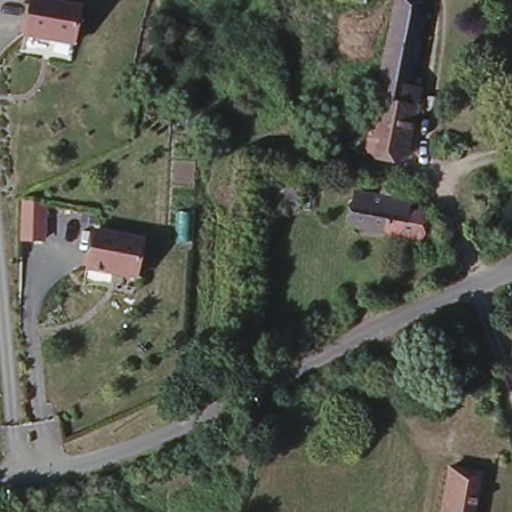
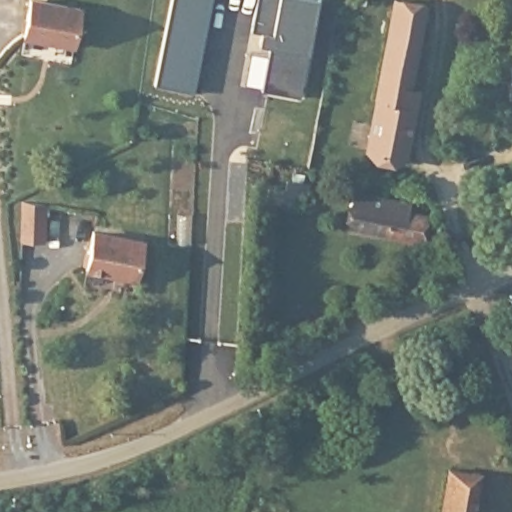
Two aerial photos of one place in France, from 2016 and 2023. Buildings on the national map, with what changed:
unchanged [(78,42),(25,31),(31,0),(62,0),(86,5),(78,42)]
new [(155,82),(170,0),(209,0),(192,89),(155,82)]
new [(319,0),(306,95),(258,87),(262,51),(250,49),(257,0),(319,0)]
unchanged [(403,155),(380,151),(366,149),(375,101),(373,101),(376,86),(392,0),(405,0),(423,4),(407,90),(415,92),(412,106),(403,155)]
unchanged [(300,180),(299,189),(289,188),(289,179),(300,180)]
unchanged [(298,192),(296,217),(264,216),(265,200),(282,200),(283,191),(298,192)]
unchanged [(418,205),(416,216),(432,219),(428,241),(358,229),(364,196),(418,205)]
new [(49,201),(47,241),(21,240),(22,199),(49,201)]
unchanged [(143,241),(137,278),(87,270),(93,233),(143,241)]
demolished [(512,310),(508,302),(512,300),(512,310)]
unchanged [(446,467),(481,472),(475,512),(439,512),(446,467)]

